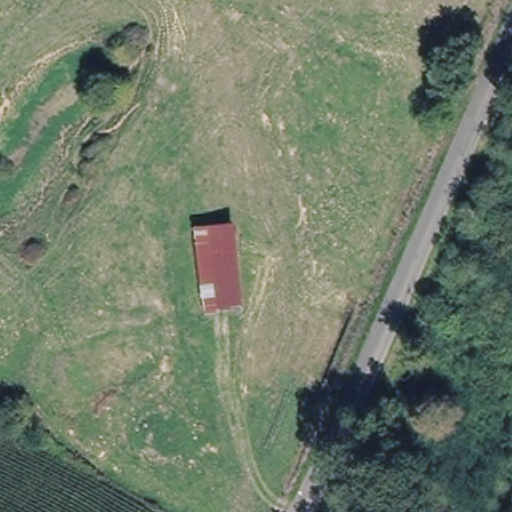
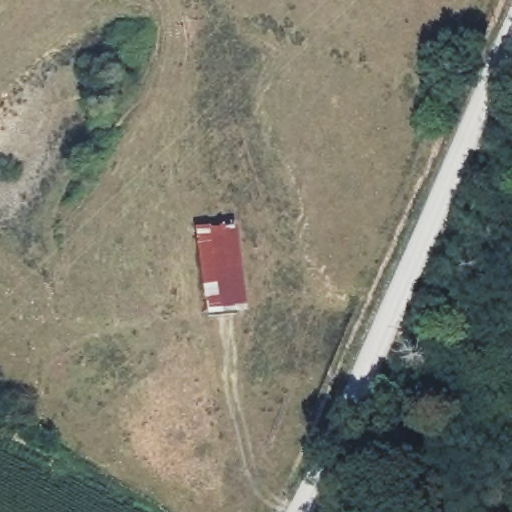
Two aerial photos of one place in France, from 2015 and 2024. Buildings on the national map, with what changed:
unchanged [(237,315),(196,315),(190,229),(234,225),(237,315)]

